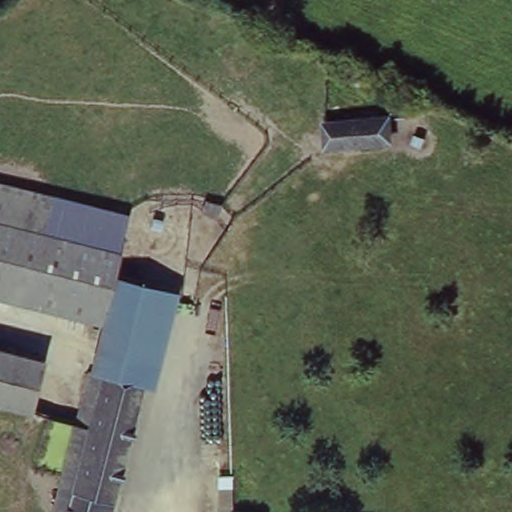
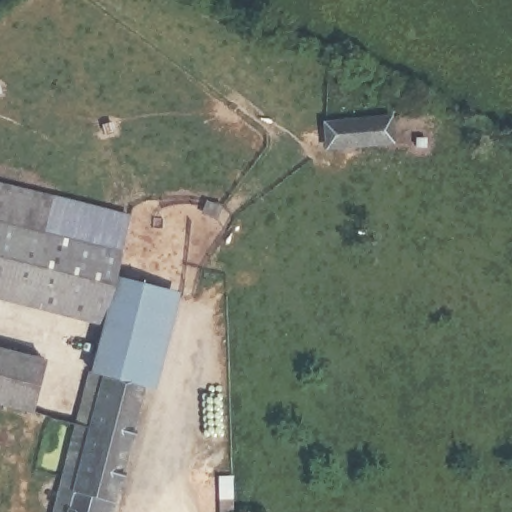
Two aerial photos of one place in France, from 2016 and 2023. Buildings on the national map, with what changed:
unchanged [(384,112),(386,134),(327,140),(324,117),(384,112)]
unchanged [(0,180),(130,213),(120,248),(0,217),(0,180)]
unchanged [(0,293),(0,217),(120,248),(116,271),(103,319),(0,293)]
unchanged [(103,319),(116,271),(159,283),(139,375),(93,362),(103,319)]
unchanged [(25,410),(0,404),(0,352),(36,361),(25,410)]
unchanged [(144,375),(111,512),(58,512),(93,362),(139,375),(144,375)]

